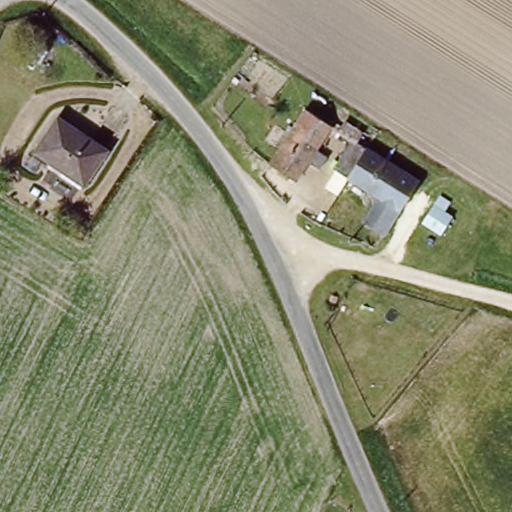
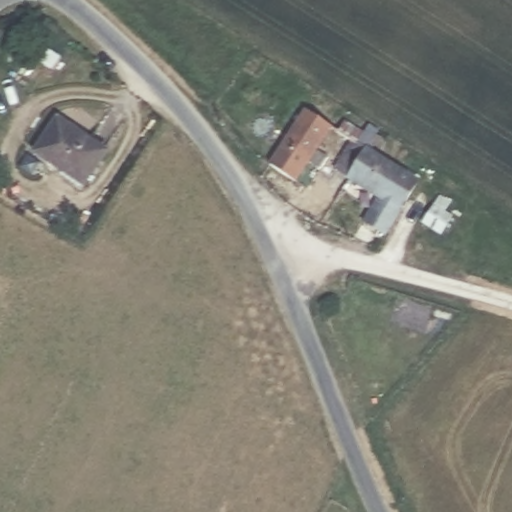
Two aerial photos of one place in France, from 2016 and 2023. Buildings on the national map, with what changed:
unchanged [(294,122),(301,112),(327,130),(310,152),(320,160),(312,171),(302,162),(287,182),(264,164),(294,122)]
unchanged [(67,170),(42,154),(62,119),(111,148),(95,177),(90,185),(67,170)]
unchanged [(416,179),(377,232),(358,217),(375,195),(347,174),(367,145),(378,152),(399,167),(416,179)]

